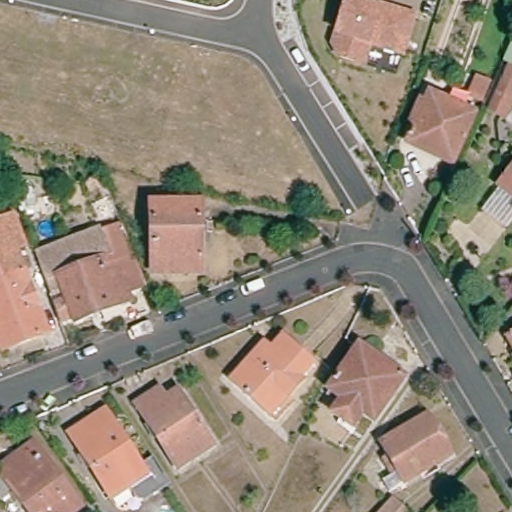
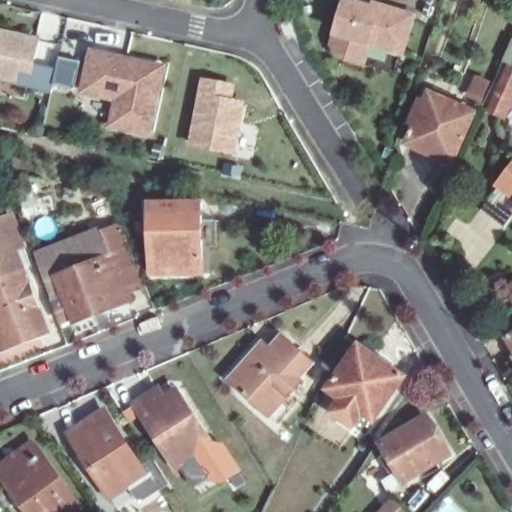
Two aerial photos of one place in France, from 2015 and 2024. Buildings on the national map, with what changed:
unchanged [(374,6),(377,2),(417,13),(405,58),(371,48),(365,66),(336,58),(329,44),(332,35),(344,0),(355,0),(374,6)]
new [(95,53),(166,68),(151,134),(115,126),(121,100),(56,87),(55,94),(18,85),(18,82),(0,78),(0,33),(41,41),(36,64),(60,70),(63,58),(92,65),(95,53)]
unchanged [(512,69),(512,108),(508,119),(495,121),(488,116),(508,66),(512,69)]
new [(237,84),(235,99),(247,101),(237,156),(189,148),(202,78),(237,84)]
unchanged [(489,82),(483,97),(473,93),(479,78),(489,82)]
unchanged [(475,113),(455,162),(411,142),(430,94),(475,113)]
unchanged [(482,209),(500,186),(498,184),(512,166),(512,218),(505,227),(482,209)]
unchanged [(202,202),(202,271),(154,272),(152,202),(202,202)]
unchanged [(113,217),(131,266),(150,313),(76,341),(75,336),(61,341),(39,284),(53,279),(49,270),(36,275),(36,274),(26,250),(113,217)]
unchanged [(6,348),(0,334),(0,220),(4,218),(15,248),(39,307),(49,331),(41,334),(6,348)]
unchanged [(512,334),(512,343),(508,336),(512,334)]
unchanged [(265,343),(273,348),(284,335),(314,362),(302,377),(305,379),(291,396),(281,387),(264,407),(233,380),(265,343)]
unchanged [(343,397),(329,388),(360,344),(405,375),(375,419),(364,412),(354,426),(333,411),(343,397)]
unchanged [(161,387),(166,397),(179,389),(213,444),(178,467),(138,402),(161,387)]
unchanged [(150,457),(157,468),(166,482),(141,498),(136,497),(126,483),(107,496),(66,432),(81,422),(101,409),(108,420),(136,466),(150,457)]
unchanged [(425,417),(438,440),(442,437),(451,453),(405,480),(400,471),(393,475),(386,464),(388,463),(385,457),(389,455),(381,442),(425,417)]
new [(243,471),(224,483),(207,481),(194,489),(179,466),(213,444),(212,442),(225,443),(243,471)]
unchanged [(30,465),(45,456),(81,505),(72,512),(29,512),(14,491),(1,499),(0,497),(0,466),(20,451),(30,465)]
unchanged [(406,512),(384,512),(394,501),(406,512)]

